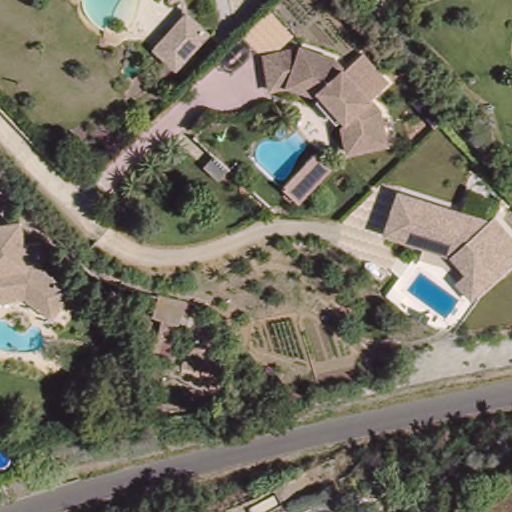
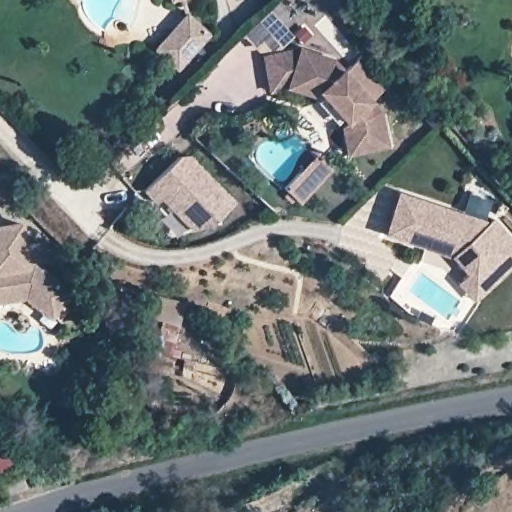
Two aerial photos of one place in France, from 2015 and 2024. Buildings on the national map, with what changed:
unchanged [(180,10),(204,33),(170,67),(148,45),(180,10)]
unchanged [(337,123),(305,88),(284,81),(266,85),(258,51),(295,42),(328,53),(374,105),(381,139),(350,146),(341,147),(337,123)]
new [(181,158),(192,158),(237,205),(216,224),(193,230),(164,199),(159,204),(147,191),(181,158)]
unchanged [(3,185),(0,189),(0,182),(3,185)]
unchanged [(381,230),(394,190),(483,219),(487,214),(512,242),(512,254),(471,290),(456,273),(462,267),(448,251),(420,242),(381,230)]
unchanged [(31,296),(0,301),(0,228),(25,225),(28,247),(45,244),(47,261),(44,262),(45,269),(60,281),(75,292),(57,316),(31,296)]
unchanged [(179,326),(151,318),(158,294),(186,303),(179,326)]
unchanged [(10,494),(7,484),(24,479),(27,489),(10,494)]

